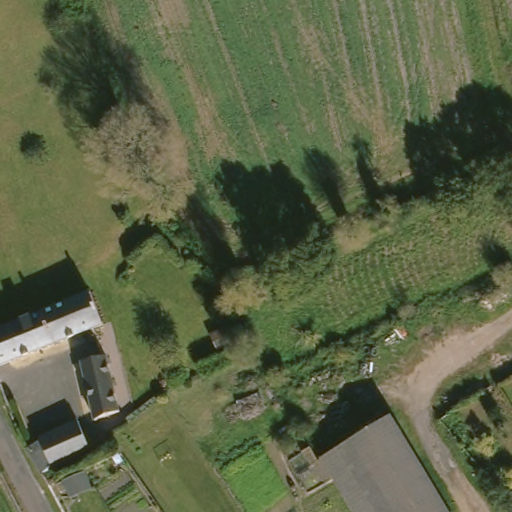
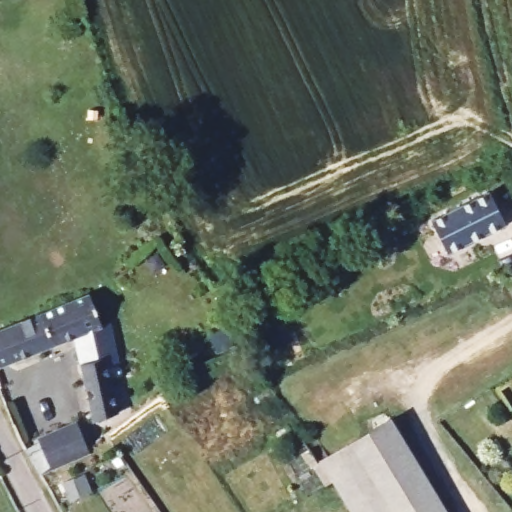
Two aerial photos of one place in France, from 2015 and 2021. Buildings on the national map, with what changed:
new [(488,195),(503,229),(443,254),(429,221),(488,195)]
unchanged [(90,300),(95,309),(102,330),(92,333),(0,371),(0,333),(90,297),(90,300)]
new [(222,331),(230,346),(217,353),(209,338),(222,331)]
unchanged [(105,354),(117,408),(117,411),(95,416),(92,416),(80,358),(105,354)]
unchanged [(395,417),(450,512),(392,512),(351,441),(395,417)]
unchanged [(33,454),(47,442),(84,426),(88,437),(95,454),(60,470),(45,476),(35,460),(33,454)]
unchanged [(335,470),(325,456),(351,441),(392,512),(358,512),(335,470)]
unchanged [(89,466),(96,480),(75,491),(68,477),(89,466)]

